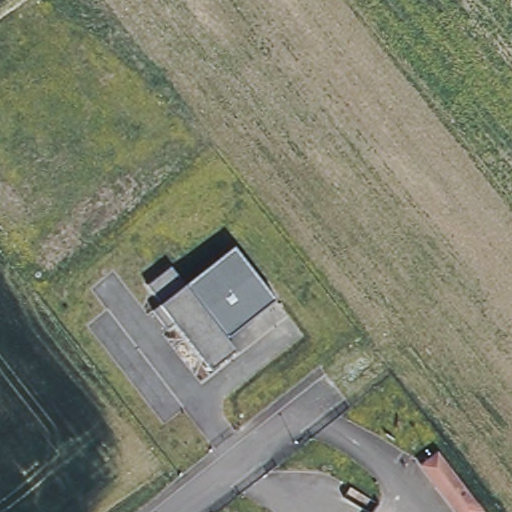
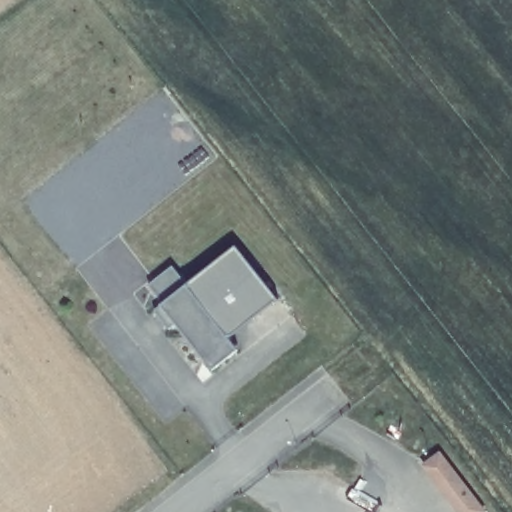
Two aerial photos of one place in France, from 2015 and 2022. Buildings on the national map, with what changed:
unchanged [(175,268),(190,283),(236,247),(278,300),(230,339),(240,350),(213,370),(177,323),(172,328),(157,311),(165,305),(151,286),(175,268)]
unchanged [(487,512),(460,512),(425,467),(442,455),(487,512)]

